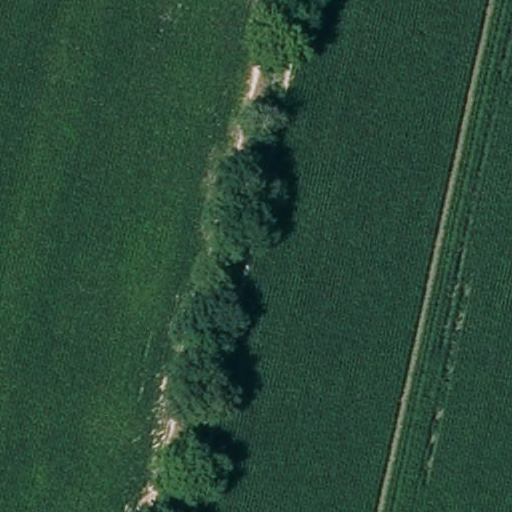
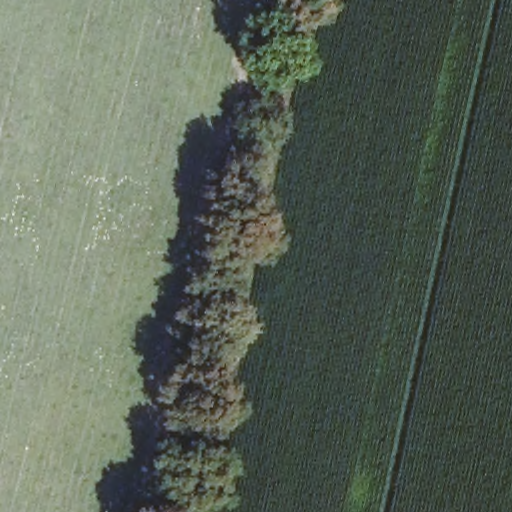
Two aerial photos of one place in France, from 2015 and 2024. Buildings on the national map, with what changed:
[]

